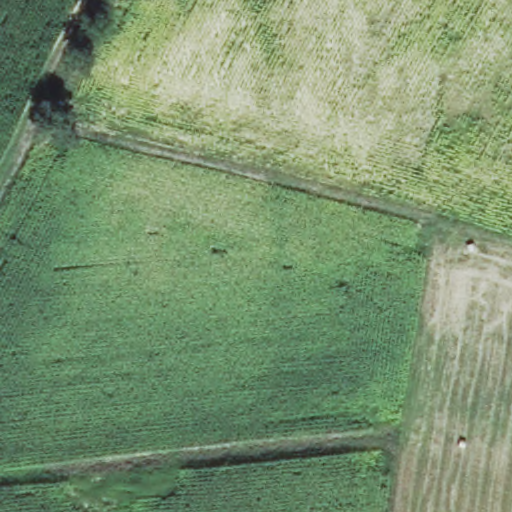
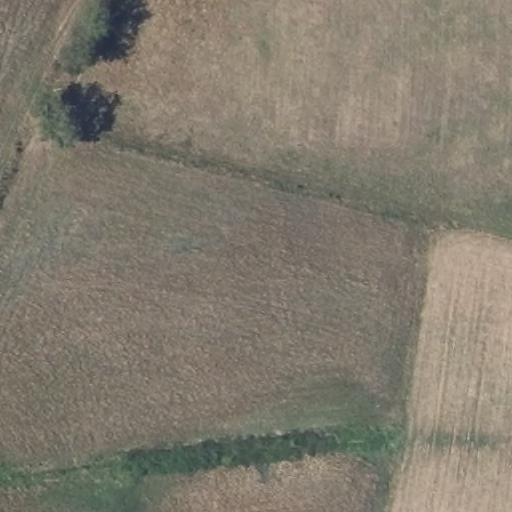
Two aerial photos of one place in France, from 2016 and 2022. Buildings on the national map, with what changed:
[]

